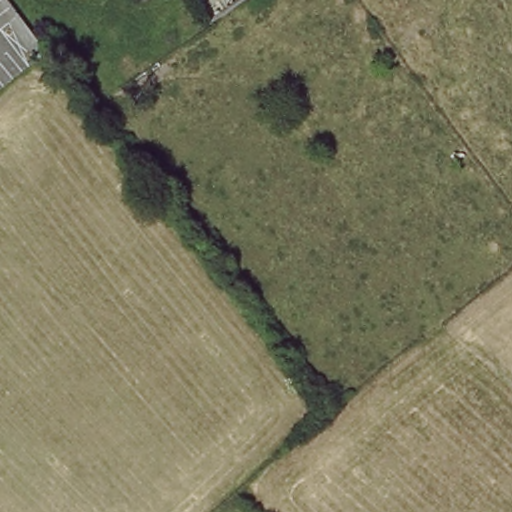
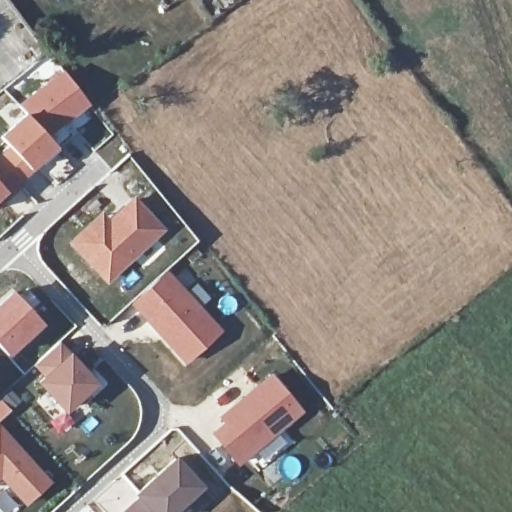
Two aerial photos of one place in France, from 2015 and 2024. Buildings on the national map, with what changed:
new [(0,138),(25,114),(16,104),(61,70),(89,104),(45,135),(53,145),(28,168),(17,182),(21,186),(0,206),(0,154),(9,145),(0,138)]
new [(101,210),(108,218),(132,196),(164,229),(107,283),(68,242),(101,210)]
new [(164,269),(222,331),(187,365),(129,303),(164,269)]
new [(58,342),(70,353),(97,382),(65,413),(36,382),(44,375),(33,364),(58,342)]
new [(222,422),(217,417),(269,373),(301,410),(237,465),(209,433),(222,422)]
new [(0,418),(0,401),(9,410),(0,418)]
new [(26,506),(0,478),(0,427),(52,482),(26,506)]
new [(132,494),(174,456),(201,485),(174,512),(120,512),(134,495),(132,494)]

